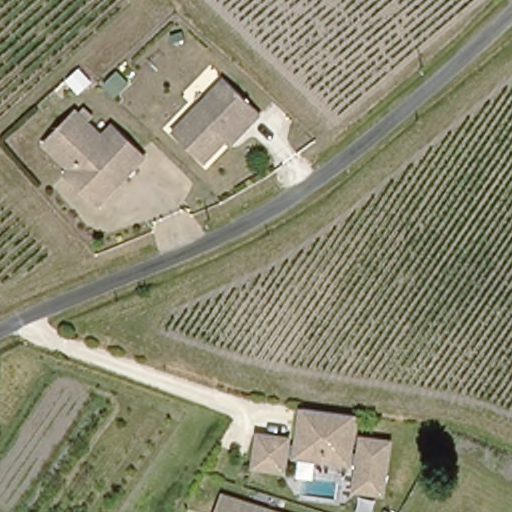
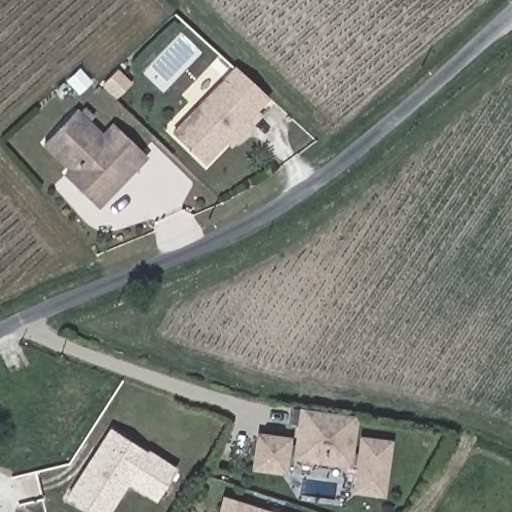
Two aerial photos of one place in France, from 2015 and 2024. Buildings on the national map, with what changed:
unchanged [(224,138),(203,161),(171,131),(223,77),(258,111),(247,123),(229,142),(224,138)]
unchanged [(76,110),(102,135),(112,124),(145,155),(98,205),(65,174),(70,169),(45,144),(76,110)]
unchanged [(261,432),(290,438),(289,442),(299,444),(303,423),(330,428),(333,412),(358,416),(351,454),(361,455),(364,440),(390,445),(381,496),(355,491),(359,466),(287,453),(284,469),(255,463),(261,432)]
new [(146,451),(148,449),(176,468),(155,501),(127,484),(109,512),(91,512),(65,495),(109,428),(146,451)]
unchanged [(254,510),(253,512),(221,512),(226,500),(254,510)]
unchanged [(255,511),(256,508),(268,512),(253,512),(254,510),(255,511)]

